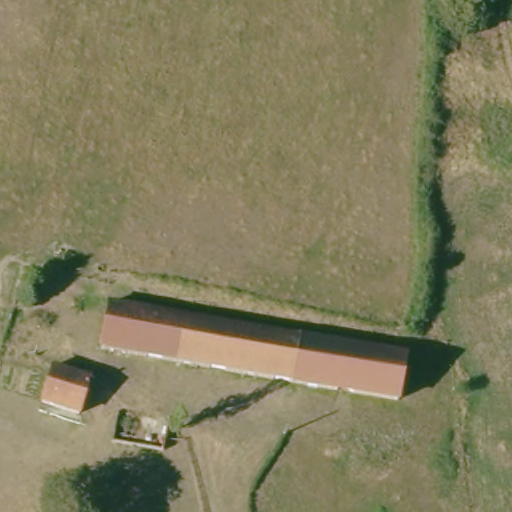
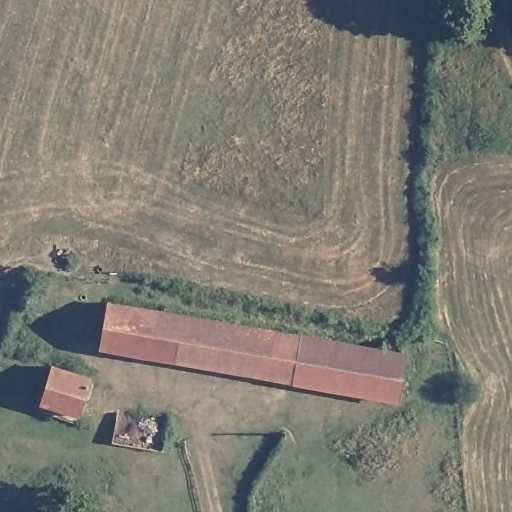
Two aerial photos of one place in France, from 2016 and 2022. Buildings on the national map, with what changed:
unchanged [(297,384),(105,350),(115,303),(303,336),(297,384)]
unchanged [(410,354),(402,403),(297,384),(303,336),(410,354)]
unchanged [(92,378),(77,421),(45,408),(60,367),(92,378)]

